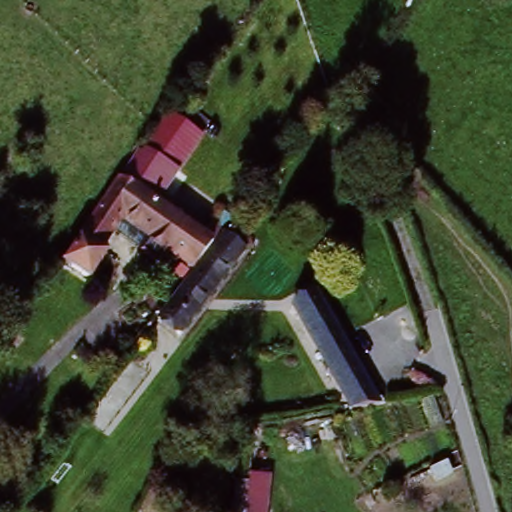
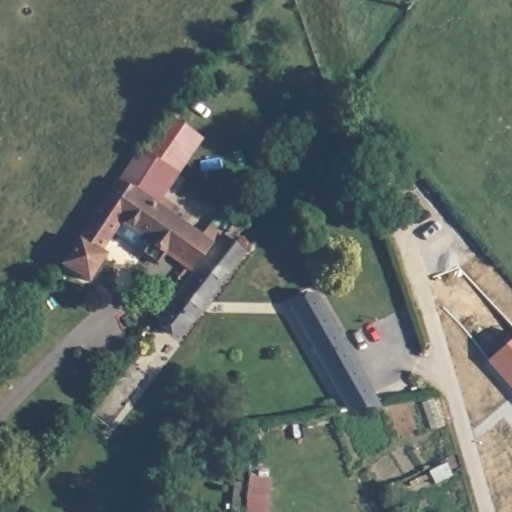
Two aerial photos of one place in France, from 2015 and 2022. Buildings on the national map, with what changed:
unchanged [(130,174),(185,112),(215,141),(160,203),(146,189),(130,174)]
unchanged [(78,277),(57,258),(79,235),(130,174),(146,189),(121,219),(95,249),(100,254),(78,277)]
unchanged [(160,203),(208,248),(189,274),(163,253),(152,266),(138,254),(148,243),(121,219),(146,189),(160,203)]
unchanged [(252,235),(186,320),(167,303),(189,274),(208,248),(231,218),(252,235)]
unchanged [(353,407),(299,312),(322,298),(381,399),(353,407)]
new [(512,340),(512,393),(487,364),(512,340)]
unchanged [(265,512),(246,512),(248,488),(235,487),(236,465),(249,466),(250,463),(268,463),(265,512)]

